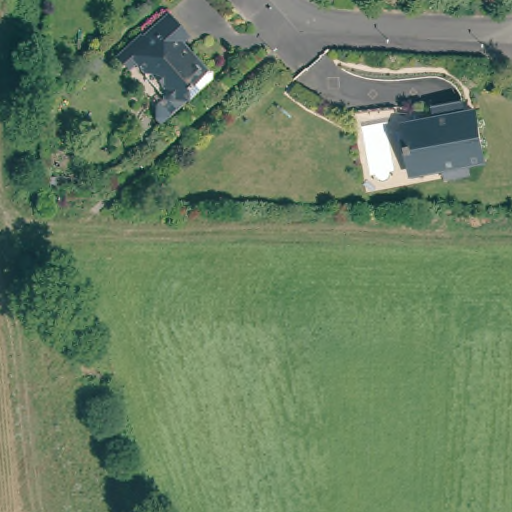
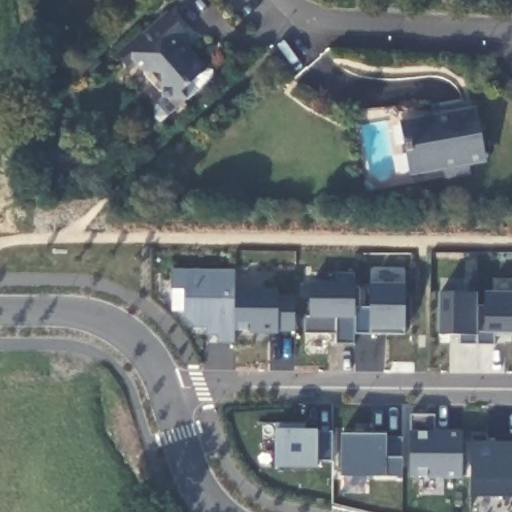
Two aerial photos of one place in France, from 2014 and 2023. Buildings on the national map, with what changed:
unchanged [(207,69),(180,92),(180,94),(156,90),(158,78),(145,64),(141,67),(130,54),(122,60),(110,46),(121,37),(135,24),(137,25),(162,3),(183,25),(174,34),(182,42),(184,40),(201,60),(200,61),(208,61),(207,69)]
unchanged [(469,165),(470,174),(445,179),(444,169),(416,174),(412,153),(405,155),(403,143),(410,141),(406,120),(434,115),(432,104),(462,99),(464,110),(475,108),(477,120),(485,161),(469,165)]
new [(185,288),(172,288),(172,270),(235,270),(234,342),(218,342),(218,327),(195,326),(184,316),(185,288)]
new [(310,317),(309,283),(334,283),(334,273),(353,272),(353,283),(370,283),(405,284),(404,329),(405,334),(354,333),(353,343),(336,343),(337,333),(306,333),(306,317),(310,317)]
new [(278,288),(278,295),(295,295),(295,331),(278,330),(278,333),(259,333),(259,330),(235,330),(235,288),(278,288)]
new [(459,343),(459,335),(437,335),(438,292),(476,293),(512,293),(512,333),(493,332),(493,345),(459,343)]
new [(433,431),(462,431),(463,479),(409,477),(410,431),(410,415),(434,416),(433,431)]
new [(317,461),(317,466),(275,465),(275,423),(305,423),(305,431),(333,431),(332,461),(317,461)]
new [(469,496),(469,480),(471,442),(471,435),(488,434),(487,442),(512,443),(512,497),(469,496)]
new [(342,477),(341,435),(386,435),(386,459),(403,460),(402,477),(387,477),(342,477)]

